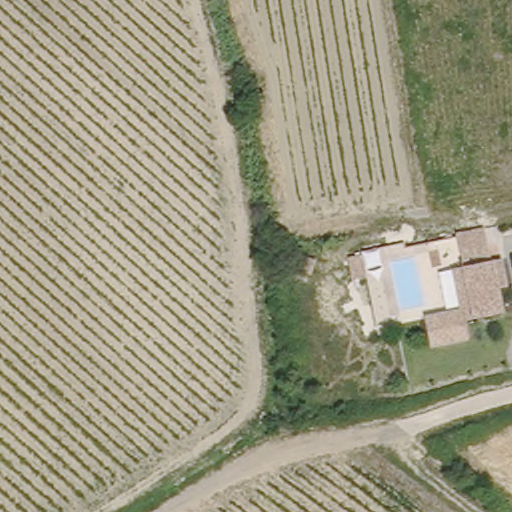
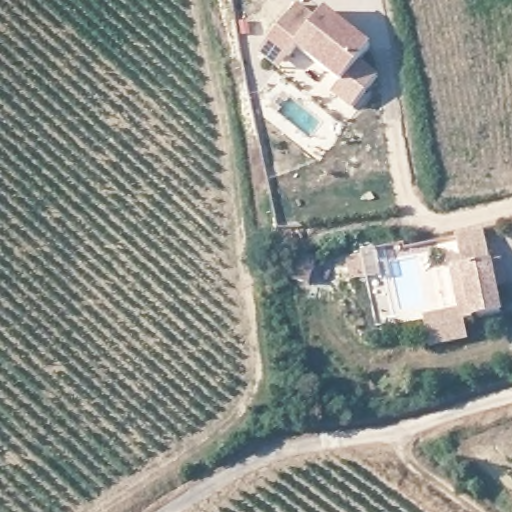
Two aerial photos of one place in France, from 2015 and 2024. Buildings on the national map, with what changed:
new [(319,18),(325,10),(373,46),(362,60),(379,74),(352,109),(331,95),(339,82),(297,49),(278,71),(258,56),(299,3),(319,18)]
unchanged [(494,229),(499,259),(509,257),(512,275),(512,286),(505,287),(510,312),(474,319),(477,336),(439,344),(434,317),(470,309),(467,292),(452,295),(447,270),(462,267),(472,265),(467,235),(494,229)]

